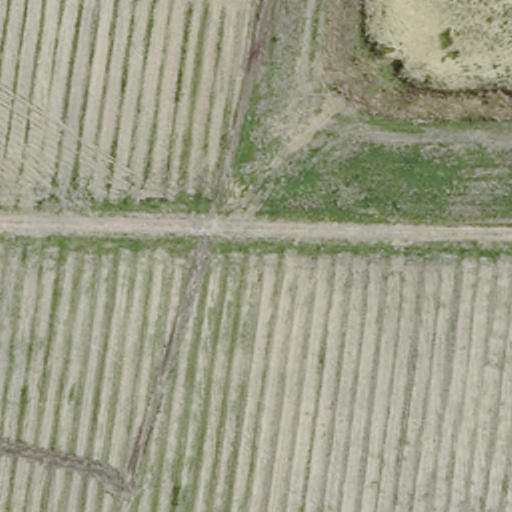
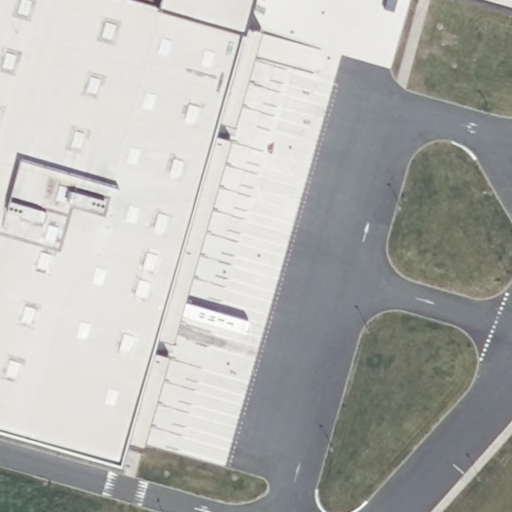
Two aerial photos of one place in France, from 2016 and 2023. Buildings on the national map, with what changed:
new [(123,463),(0,428),(0,0),(253,0),(245,29),(123,463)]

